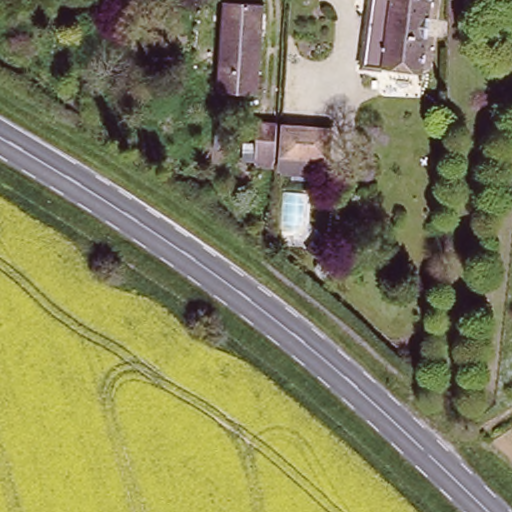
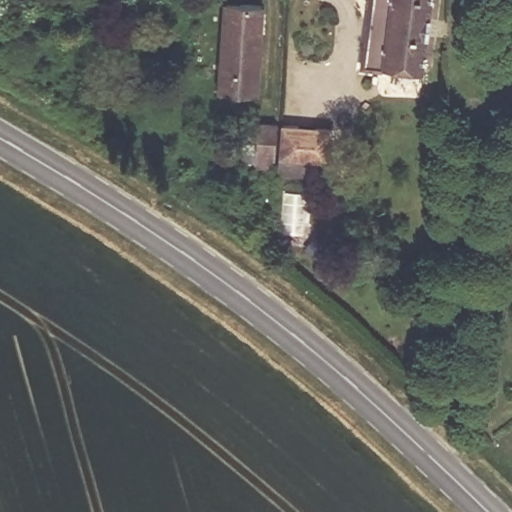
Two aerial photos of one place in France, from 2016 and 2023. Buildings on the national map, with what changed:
unchanged [(371,8),(371,0),(436,0),(435,33),(390,30),(391,9),(371,8)]
unchanged [(237,4),(266,5),(262,95),(223,95),(226,3),(237,4)]
unchanged [(390,30),(435,33),(432,73),(369,71),(371,8),(391,9),(390,30)]
unchanged [(283,131),(330,131),(330,166),(282,166),(283,131)]
unchanged [(275,178),(256,178),(257,136),(276,136),(275,178)]

